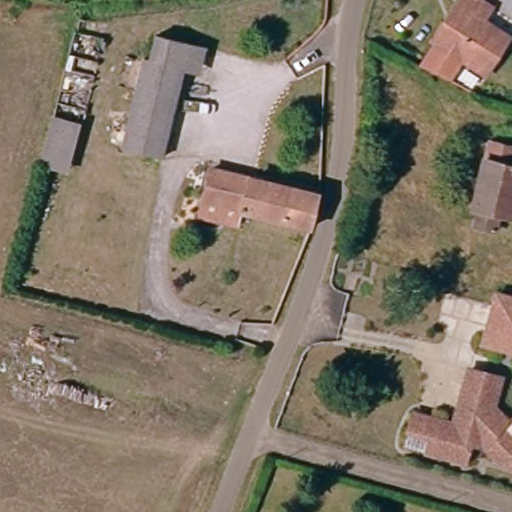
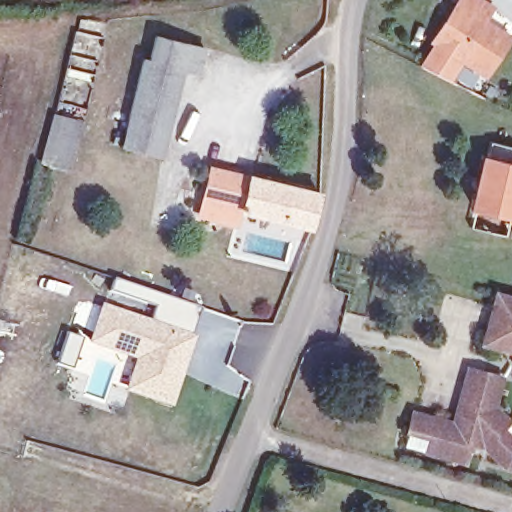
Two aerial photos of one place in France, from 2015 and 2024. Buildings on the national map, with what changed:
unchanged [(440,26),(451,6),(455,0),(468,0),(486,11),(479,22),(505,38),(482,77),(457,62),(445,84),(443,83),(418,71),(432,47),(428,45),(440,26)]
unchanged [(145,59),(152,60),(154,50),(158,33),(207,44),(204,57),(201,71),(185,68),(165,157),(125,148),(145,59)]
unchanged [(80,130),(66,178),(39,171),(53,123),(80,130)]
unchanged [(493,159),(497,142),(512,145),(512,217),(501,214),(497,231),(477,227),(481,209),(472,207),(483,157),(493,159)]
unchanged [(198,213),(201,199),(209,168),(230,173),(228,184),(242,187),(244,176),(304,189),(317,192),(310,224),(238,208),(235,221),(198,213)]
new [(151,320),(156,306),(109,290),(113,279),(200,308),(191,335),(195,336),(172,407),(124,392),(135,360),(85,343),(100,303),(151,320)]
unchanged [(482,343),(496,294),(512,299),(512,351),(482,343)]
unchanged [(511,429),(512,430),(512,467),(509,465),(491,448),(477,444),(474,455),(472,463),(449,457),(435,453),(412,446),(416,432),(421,415),(460,426),(461,426),(462,426),(469,401),(477,372),(508,381),(500,409),(512,421),(512,428),(511,429)]

